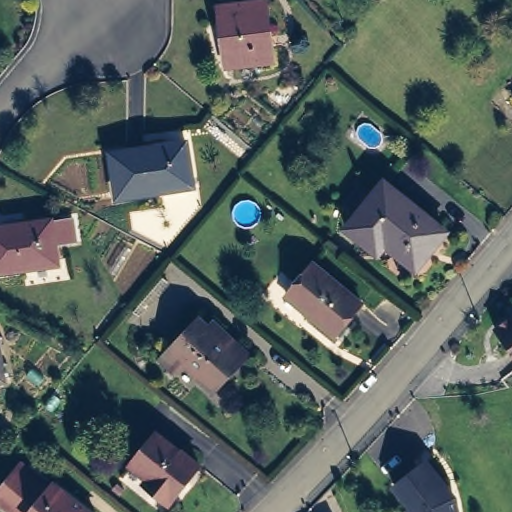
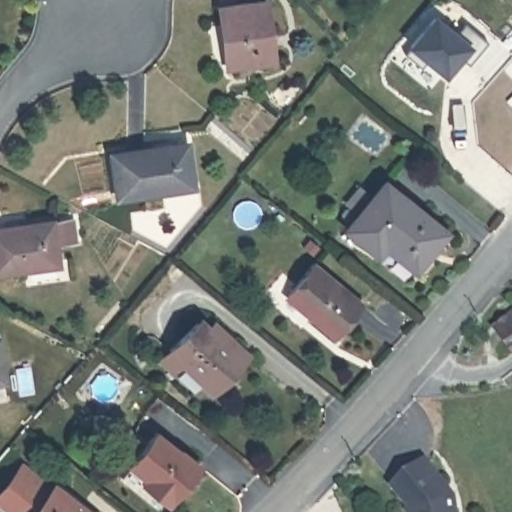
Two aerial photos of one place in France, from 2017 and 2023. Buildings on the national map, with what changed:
unchanged [(275,68),(232,71),(227,16),(268,11),(275,68)]
new [(433,18),(454,36),(464,24),(487,44),(467,66),(458,59),(444,76),(426,61),(420,69),(402,54),(433,18)]
unchanged [(202,184),(127,195),(120,150),(195,139),(202,184)]
unchanged [(448,225),(418,263),(388,237),(382,244),(352,221),(388,178),(448,225)]
unchanged [(0,270),(0,226),(55,217),(60,262),(0,270)]
unchanged [(366,302),(340,334),(314,312),(315,311),(290,290),(317,259),(366,302)]
unchanged [(495,327),(512,314),(512,349),(495,327)]
unchanged [(165,358),(174,348),(200,318),(209,327),(214,322),(217,319),(251,350),(231,371),(216,388),(185,359),(177,367),(165,358)]
unchanged [(0,379),(0,335),(2,334),(8,378),(0,379)]
unchanged [(152,476),(135,462),(161,429),(203,462),(172,501),(154,486),(147,481),(152,476)]
unchanged [(408,511),(412,508),(395,488),(425,463),(445,486),(442,489),(455,504),(456,512),(409,512),(408,511)]
unchanged [(2,500),(27,467),(55,489),(58,486),(93,512),(17,512),(2,500)]

